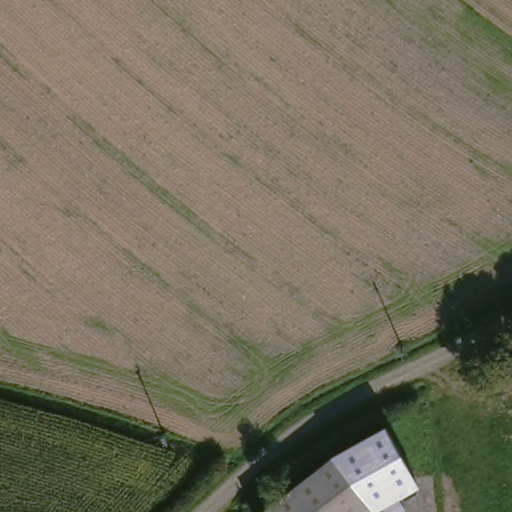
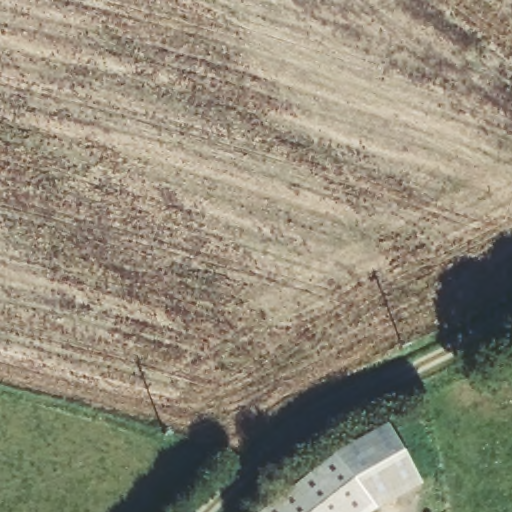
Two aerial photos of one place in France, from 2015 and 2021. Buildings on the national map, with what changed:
unchanged [(418,485),(372,511),(371,512),(356,512),(372,499),(361,486),(339,460),(333,453),(385,425),(418,485)]
unchanged [(372,499),(356,512),(263,512),(333,453),(372,499)]

